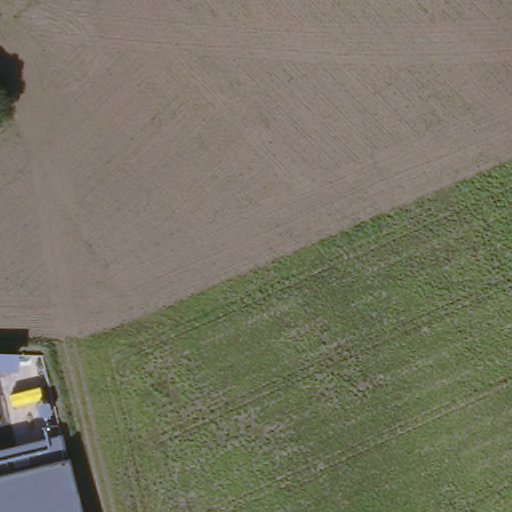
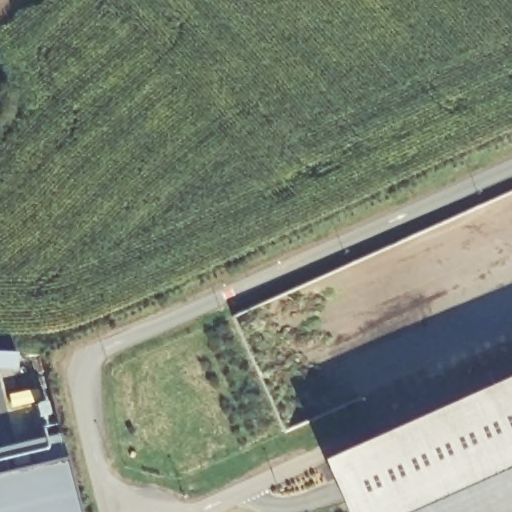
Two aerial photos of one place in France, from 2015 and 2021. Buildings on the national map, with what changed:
new [(512,381),(512,512),(342,512),(321,467),(512,381)]
unchanged [(61,436),(81,512),(0,512),(0,451),(61,436)]

